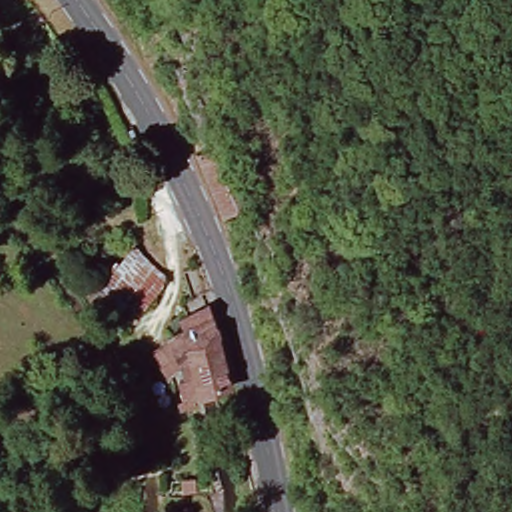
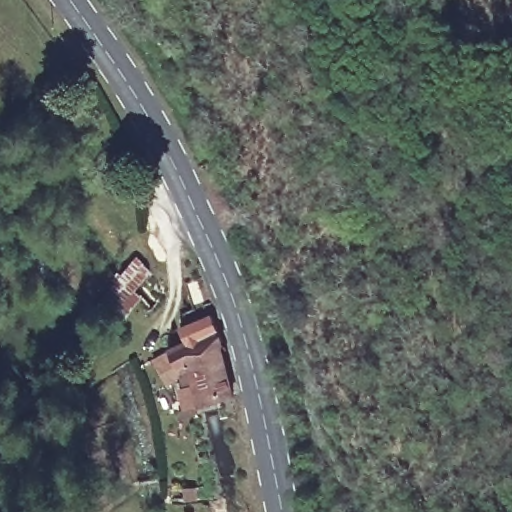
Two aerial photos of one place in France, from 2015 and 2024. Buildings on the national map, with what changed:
unchanged [(223,237),(193,179),(225,164),(248,225),(223,237)]
unchanged [(95,305),(131,258),(167,289),(137,326),(128,313),(115,331),(95,305)]
unchanged [(171,398),(166,387),(161,388),(150,359),(185,346),(181,334),(212,323),(225,356),(218,360),(227,403),(204,412),(183,417),(176,397),(171,398)]

